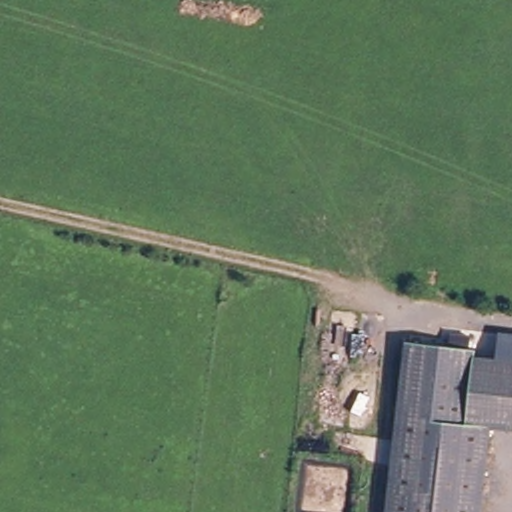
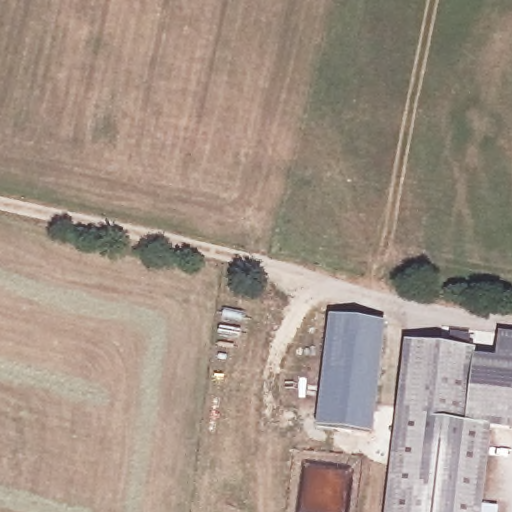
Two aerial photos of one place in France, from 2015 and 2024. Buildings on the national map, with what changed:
new [(386,321),(373,431),(317,425),(330,315),(386,321)]
unchanged [(482,512),(388,512),(409,350),(452,355),(455,343),(473,345),(471,358),(478,359),(477,366),(468,433),(491,436),(482,512)]
unchanged [(512,344),(512,371),(500,369),(503,343),(512,344)]
unchanged [(477,366),(500,369),(512,371),(512,439),(491,436),(468,433),(477,366)]

